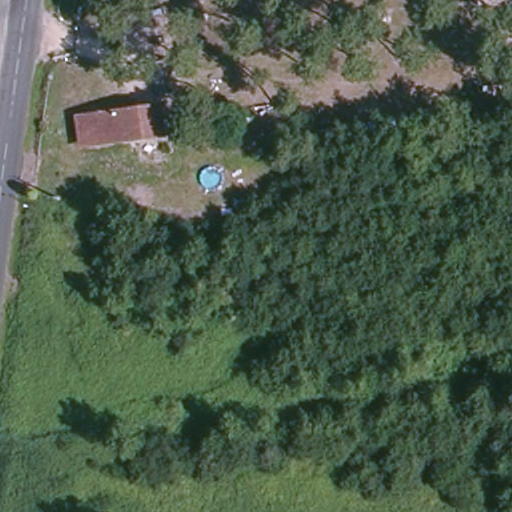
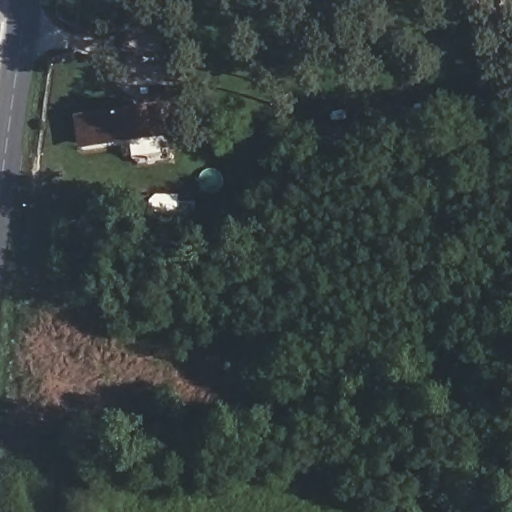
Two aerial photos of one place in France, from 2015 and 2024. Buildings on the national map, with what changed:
unchanged [(166,135),(92,150),(85,122),(162,107),(166,135)]

